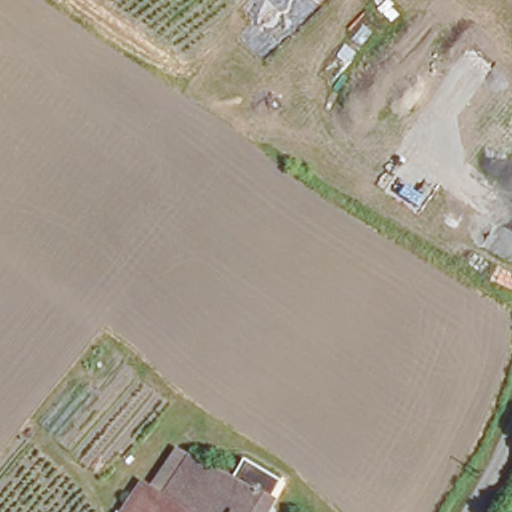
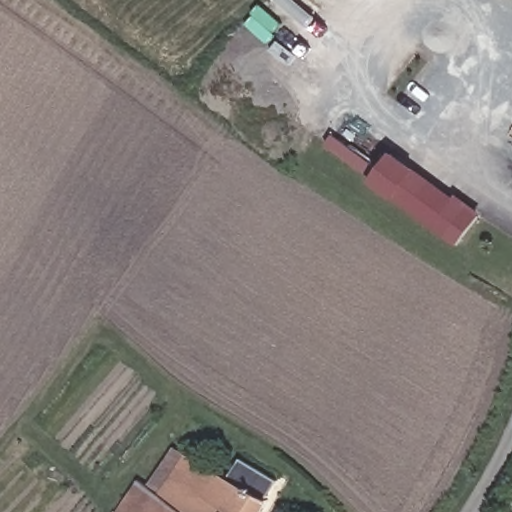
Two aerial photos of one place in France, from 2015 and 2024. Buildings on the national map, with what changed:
new [(367,180),(387,153),(473,213),(452,243),(367,180)]
unchanged [(178,442),(191,449),(194,451),(169,494),(165,493),(150,483),(178,442)]
unchanged [(165,493),(169,494),(194,451),(258,490),(269,472),(287,484),(270,512),(129,512),(147,481),(150,483),(165,493)]

